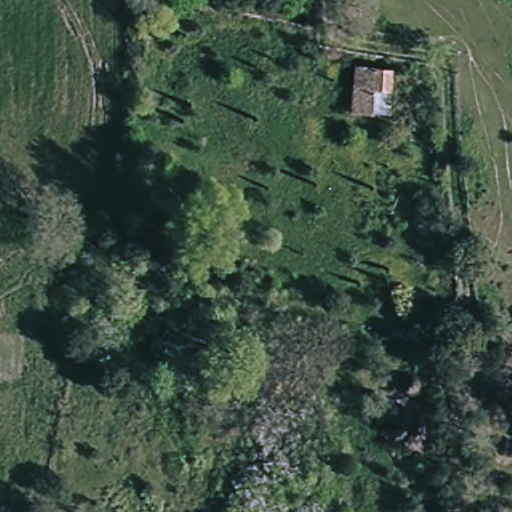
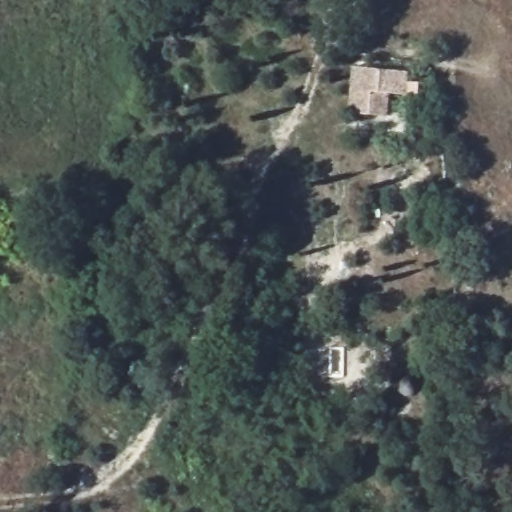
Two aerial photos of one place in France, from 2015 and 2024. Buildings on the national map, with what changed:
unchanged [(349,66),(391,69),(387,96),(370,94),(367,119),(343,116),(349,66)]

